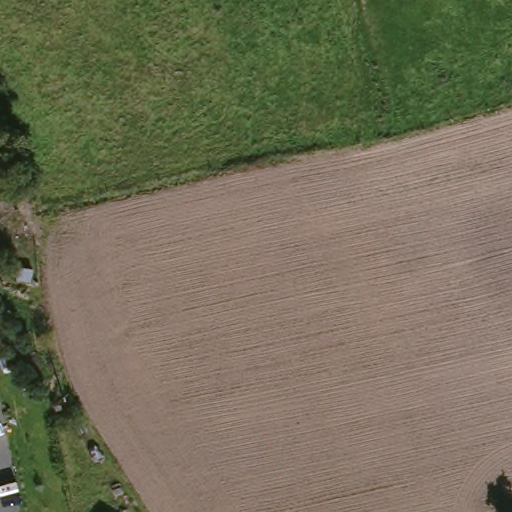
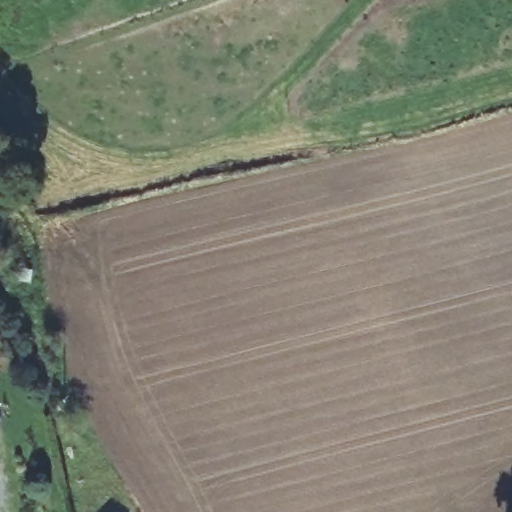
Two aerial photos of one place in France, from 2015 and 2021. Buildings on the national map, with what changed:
[]

